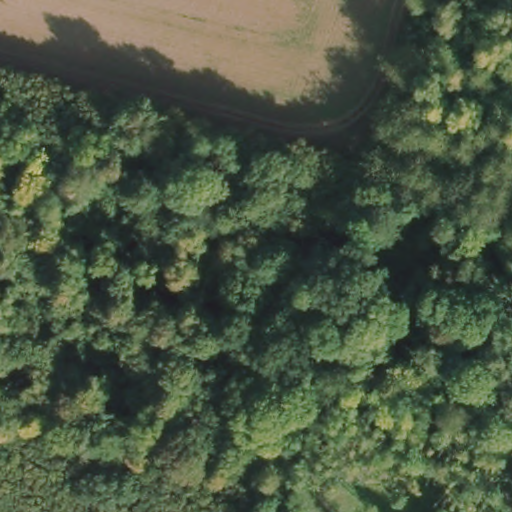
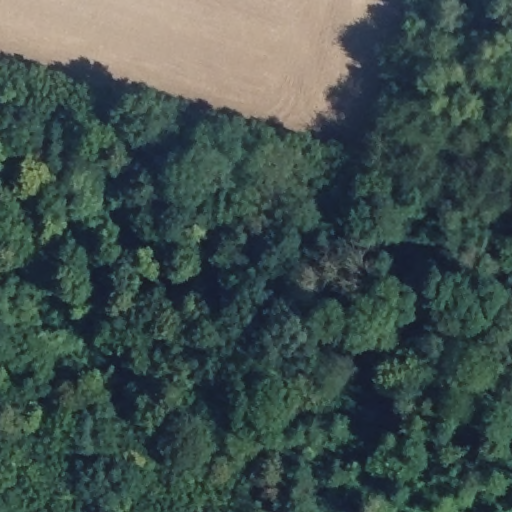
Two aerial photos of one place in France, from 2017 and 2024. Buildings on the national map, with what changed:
unchanged [(447,293),(437,328),(397,324),(402,289),(447,293)]

